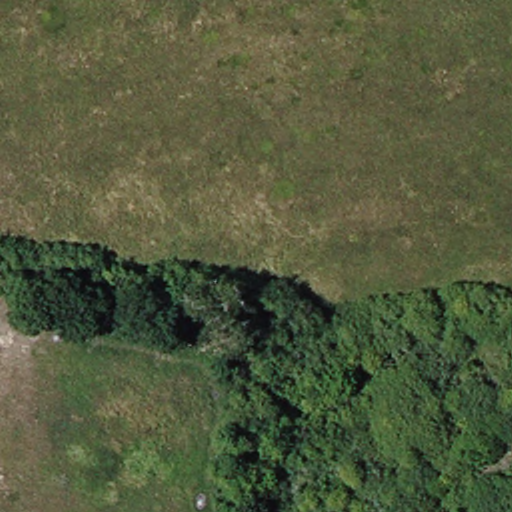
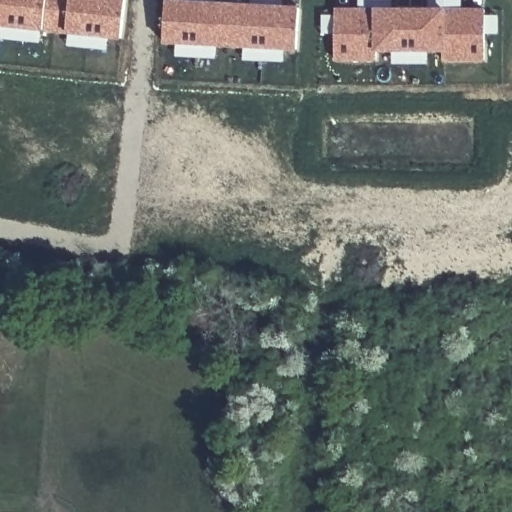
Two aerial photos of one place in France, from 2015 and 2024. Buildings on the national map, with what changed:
new [(109,39),(108,45),(99,44),(99,49),(68,46),(69,35),(40,32),(39,42),(1,39),(3,27),(0,27),(0,0),(125,0),(121,40),(109,39)]
new [(259,4),(259,0),(274,0),(274,5),(299,6),(297,52),(284,51),(283,62),(243,60),(245,48),(217,47),(216,58),(182,57),(183,46),(164,45),(166,0),(192,0),(206,0),(206,1),(259,4)]
new [(454,0),(454,8),(482,9),(483,63),(445,62),(444,54),(374,53),(374,61),(335,62),(335,9),(367,9),(367,0),(383,0),(383,9),(438,7),(438,0),(454,0)]

